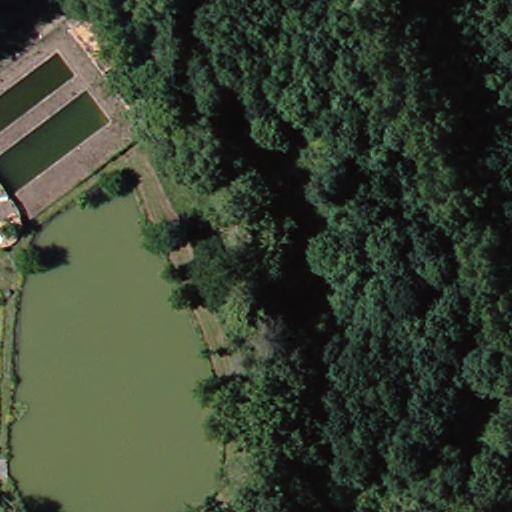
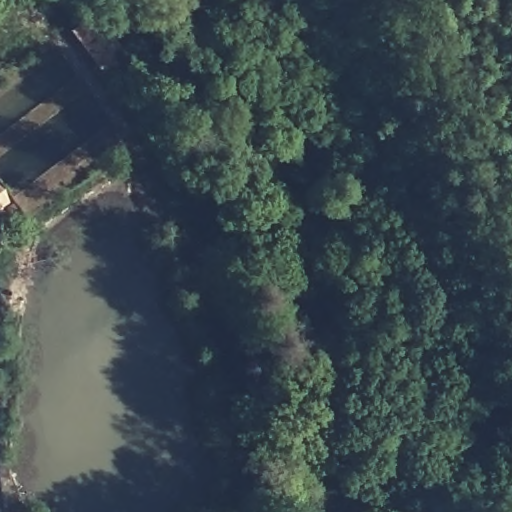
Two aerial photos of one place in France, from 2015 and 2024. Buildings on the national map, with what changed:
unchanged [(132,94),(140,87),(89,25),(99,16),(107,27),(103,31),(137,75),(145,69),(165,93),(153,103),(145,110),(132,94)]

